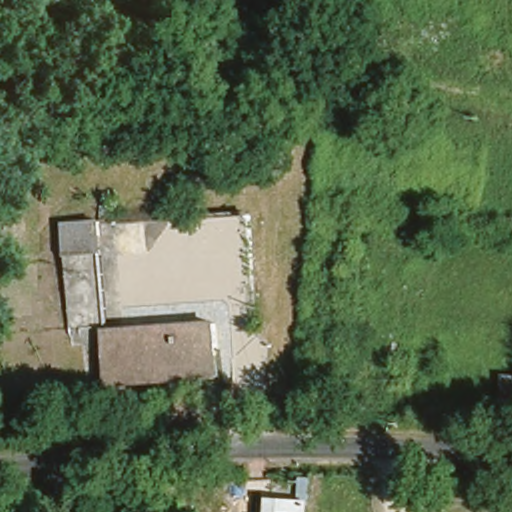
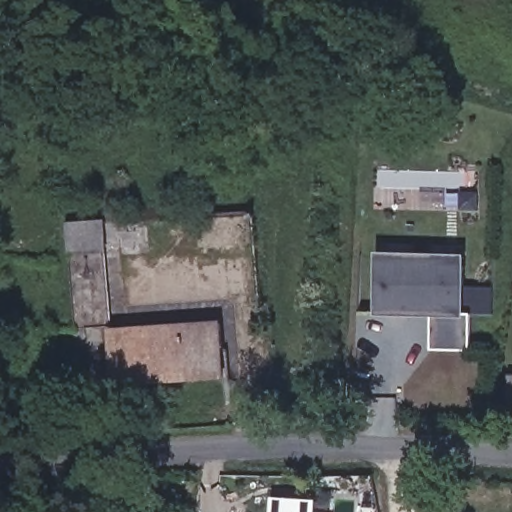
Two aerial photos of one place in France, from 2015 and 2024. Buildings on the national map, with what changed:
unchanged [(104,224),(111,298),(67,302),(61,229),(104,224)]
new [(471,351),(429,350),(431,318),(374,317),(375,252),(465,255),(463,314),(471,314),(471,351)]
unchanged [(213,374),(117,384),(112,330),(209,321),(213,374)]
unchanged [(508,395),(509,369),(512,369),(512,395),(508,395)]
unchanged [(267,484),(311,488),(308,512),(264,512),(267,484)]

